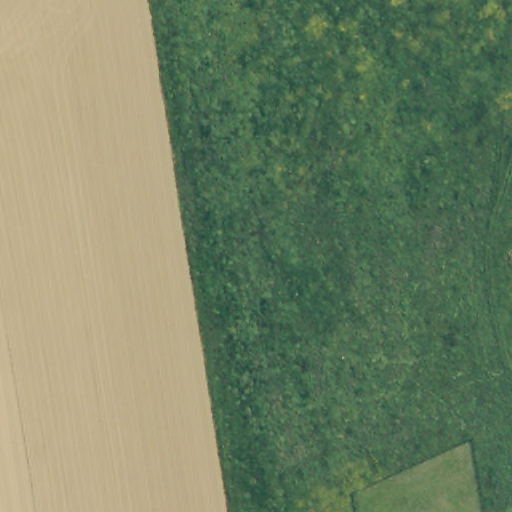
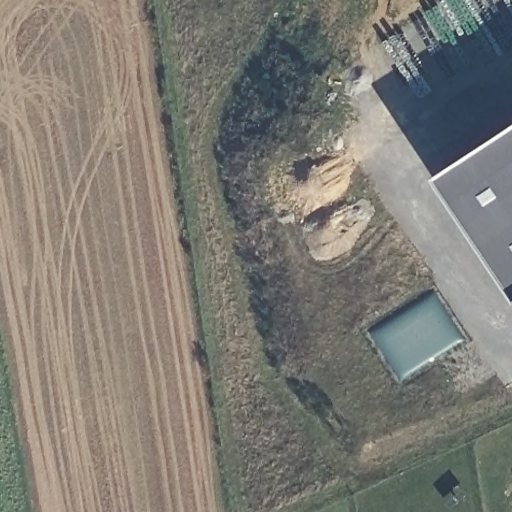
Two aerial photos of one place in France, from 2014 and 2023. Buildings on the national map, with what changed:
new [(444,181),(512,135),(512,284),(444,181)]

